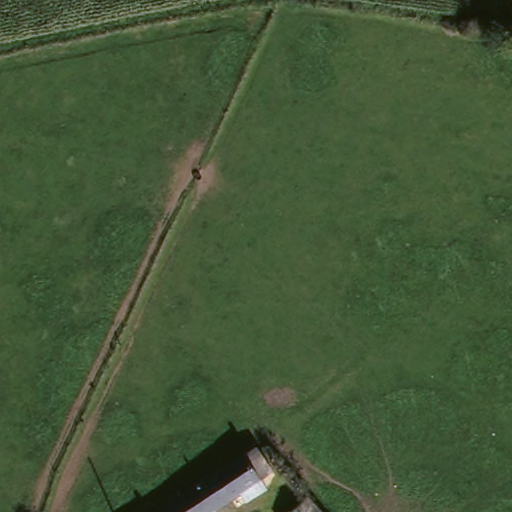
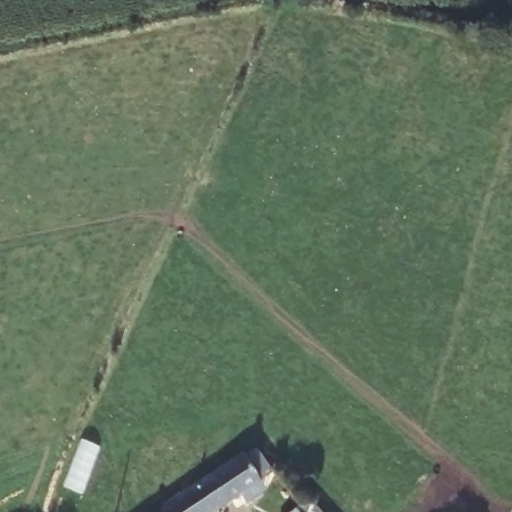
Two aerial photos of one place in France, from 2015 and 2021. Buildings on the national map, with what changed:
unchanged [(248,507),(241,495),(214,512),(187,512),(178,498),(186,493),(243,457),(246,461),(259,452),(273,474),(261,482),(268,494),(248,507)]
unchanged [(311,495),(325,512),(289,512),(311,495)]
unchanged [(178,498),(187,512),(157,512),(178,498)]

